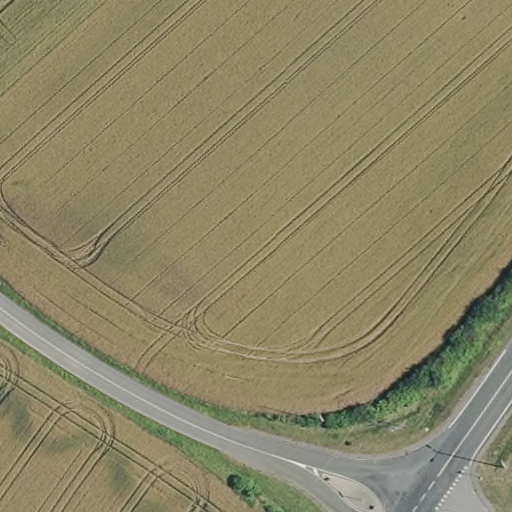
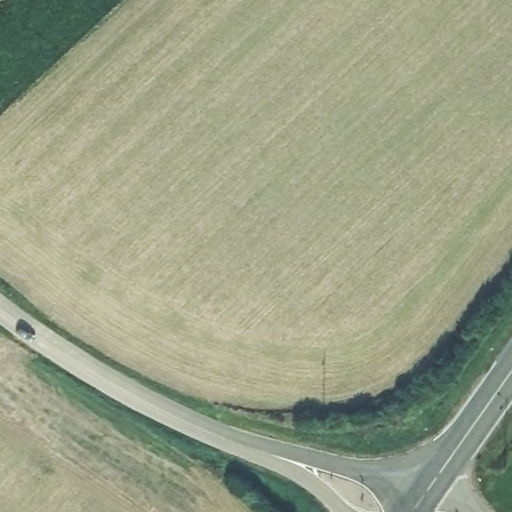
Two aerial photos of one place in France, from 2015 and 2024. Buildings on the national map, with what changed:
[]

